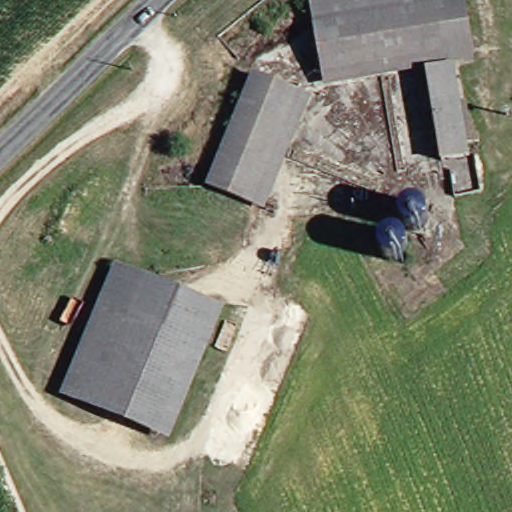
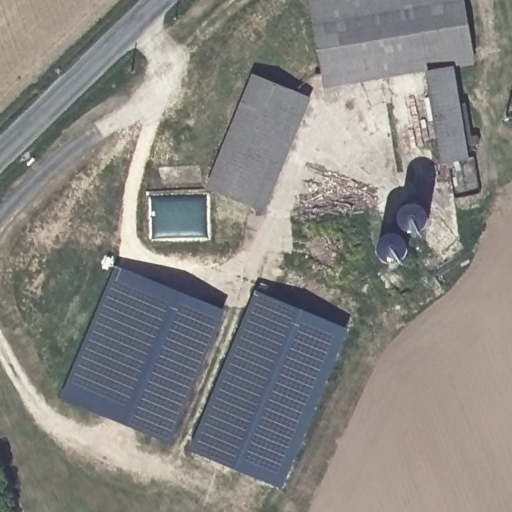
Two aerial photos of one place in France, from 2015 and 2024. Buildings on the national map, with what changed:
unchanged [(474,68),(462,68),(454,68),(442,68),(426,69),(409,69),(376,72),(320,79),(311,0),(313,0),(463,0),(474,68)]
unchanged [(469,171),(460,172),(439,173),(433,117),(426,69),(442,68),(454,68),(469,171)]
unchanged [(256,76),(316,99),(271,212),(210,189),(256,76)]
unchanged [(427,215),(431,224),(431,236),(423,248),(411,251),(397,248),(388,241),(386,232),(390,218),(397,211),(405,208),(415,209),(427,215)]
unchanged [(382,246),(393,249),(400,259),(400,262),(400,271),(391,279),(385,280),(383,281),(372,277),(370,273),(368,269),(369,260),(372,252),(373,251),(382,246)]
unchanged [(168,440),(72,400),(125,272),(220,311),(172,431),(168,440)]
new [(283,487),(189,450),(255,290),(349,328),(283,487)]

